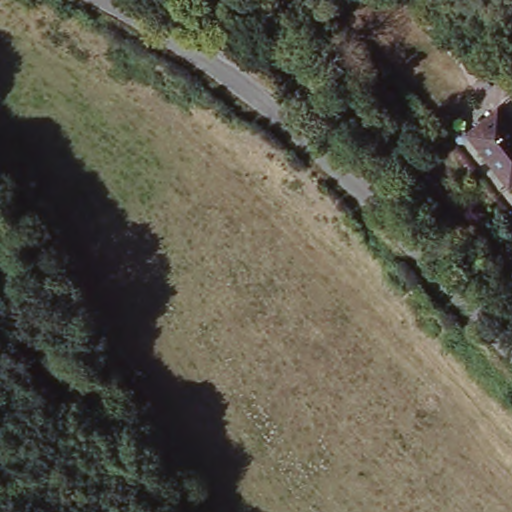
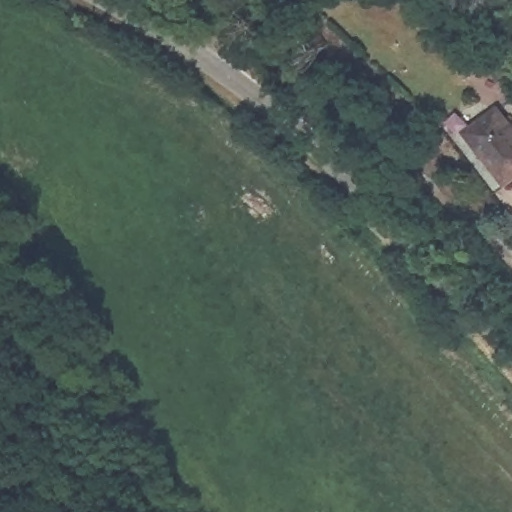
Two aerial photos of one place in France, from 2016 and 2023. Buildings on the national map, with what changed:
unchanged [(512,180),(508,184),(465,134),(494,111),(512,131),(512,180)]

